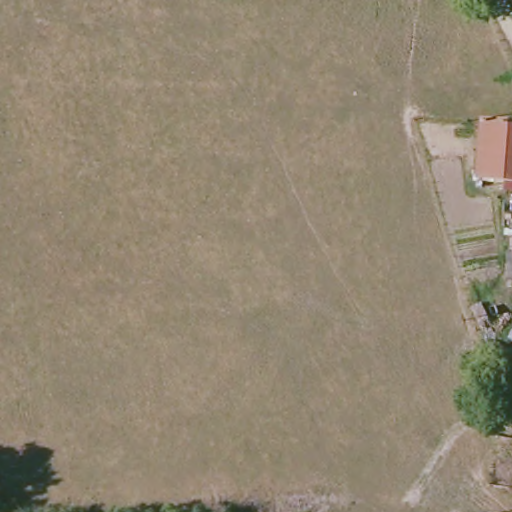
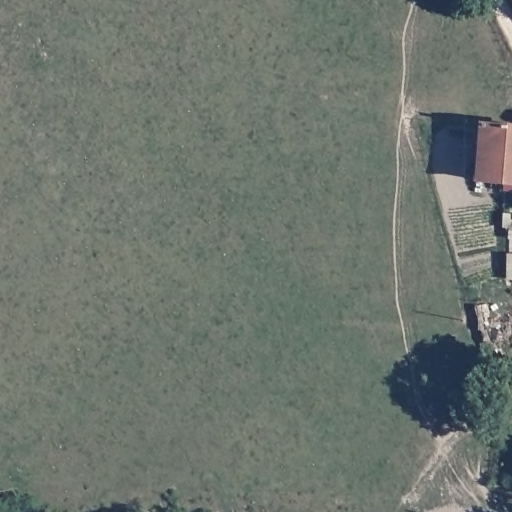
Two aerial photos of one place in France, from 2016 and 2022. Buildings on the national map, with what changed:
unchanged [(512,121),(512,179),(481,176),(485,118),(512,121)]

